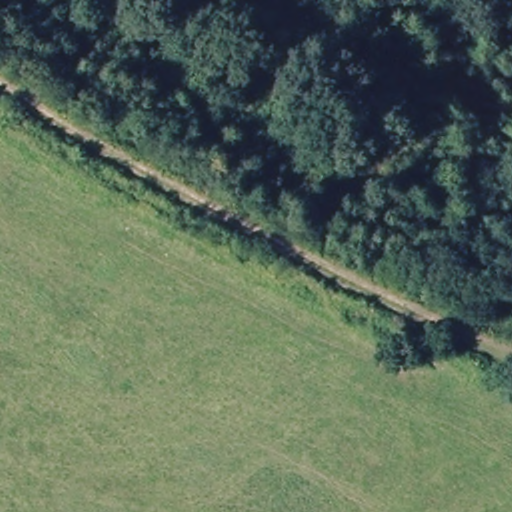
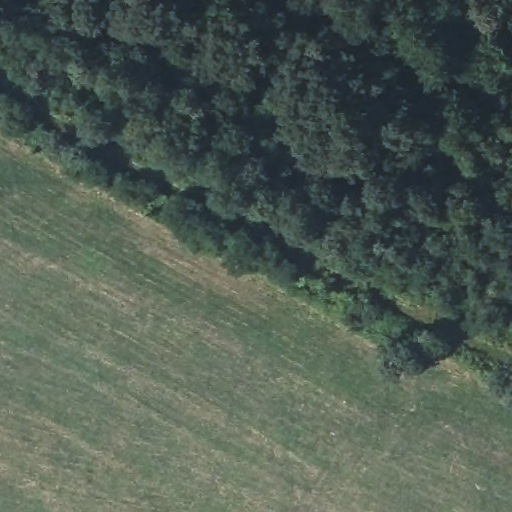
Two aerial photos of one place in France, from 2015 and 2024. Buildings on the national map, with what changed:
[]

